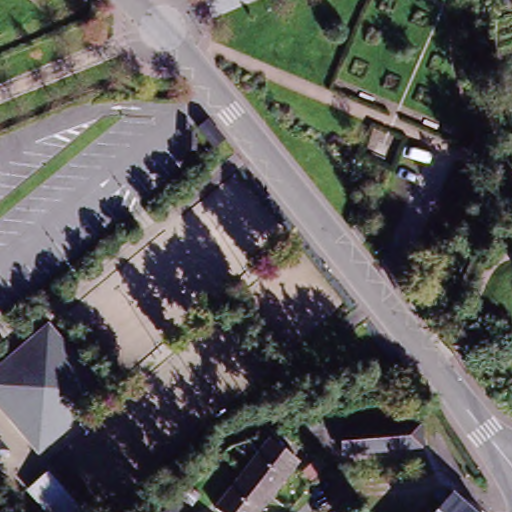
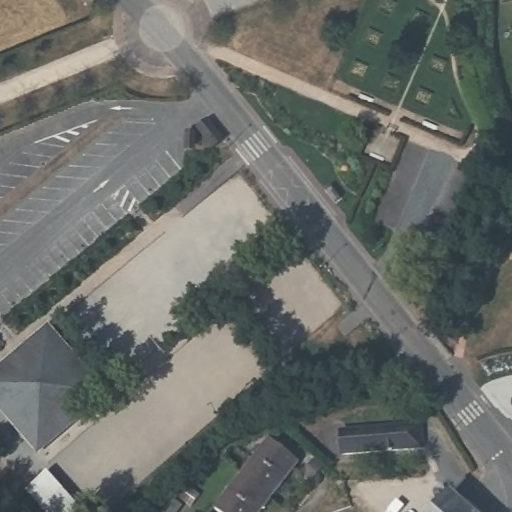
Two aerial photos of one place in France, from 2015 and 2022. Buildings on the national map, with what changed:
unchanged [(197,129),(209,119),(227,140),(215,150),(199,132),(197,129)]
unchanged [(199,132),(199,151),(187,152),(187,131),(199,132)]
unchanged [(40,455),(0,410),(0,370),(56,323),(114,392),(40,455)]
unchanged [(422,450),(329,457),(327,434),(372,430),(395,428),(420,426),(422,450)]
unchanged [(262,437),(297,460),(258,512),(214,512),(210,508),(262,437)]
unchanged [(41,472),(80,512),(33,512),(17,495),(41,472)]
unchanged [(452,494),(472,512),(436,512),(452,494)]

